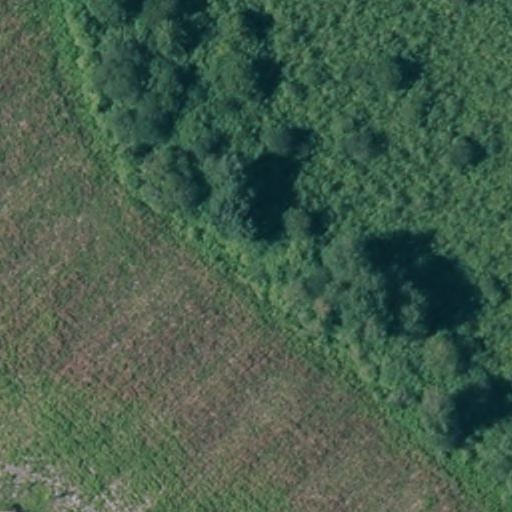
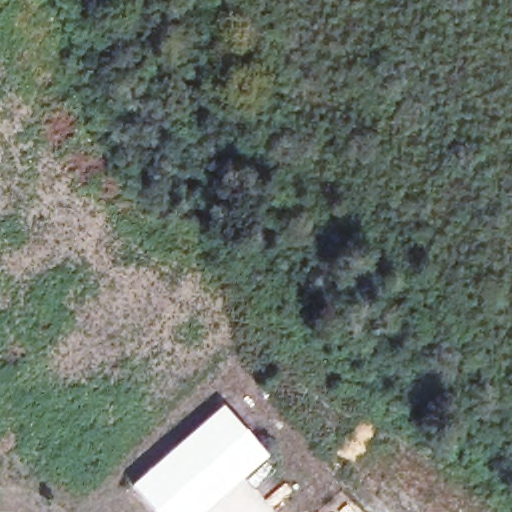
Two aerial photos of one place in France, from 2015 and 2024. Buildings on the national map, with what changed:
new [(269,455),(204,512),(157,512),(132,484),(224,404),(269,455)]

